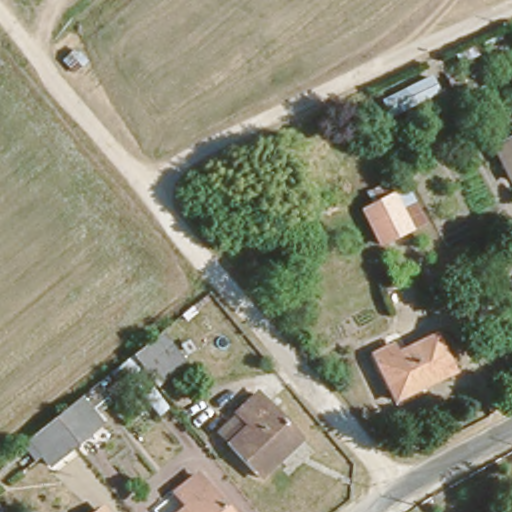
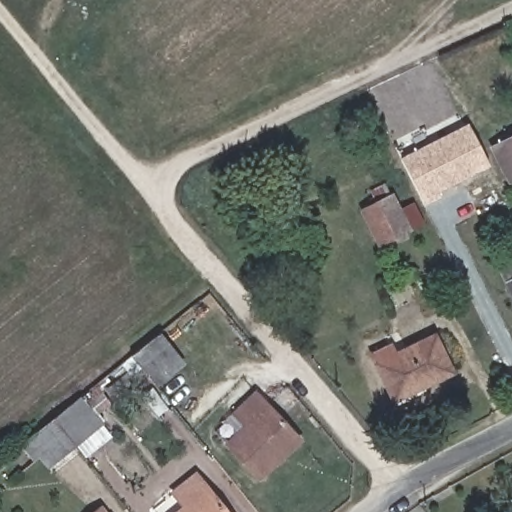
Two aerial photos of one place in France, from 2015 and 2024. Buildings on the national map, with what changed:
unchanged [(442,99),(388,124),(376,97),(428,71),(442,99)]
new [(421,202),(399,158),(467,124),(489,167),(421,202)]
new [(489,146),(512,134),(512,180),(507,183),(489,146)]
demolished [(512,137),(512,169),(500,144),(512,137)]
unchanged [(412,225),(381,240),(366,209),(396,193),(412,225)]
unchanged [(512,273),(512,298),(503,277),(512,273)]
unchanged [(185,365),(158,388),(131,355),(158,332),(185,365)]
unchanged [(451,372),(395,401),(368,352),(389,342),(397,353),(430,337),(451,372)]
unchanged [(77,395),(99,422),(72,445),(50,418),(77,395)]
unchanged [(295,442),(253,475),(214,428),(255,395),(295,442)]
unchanged [(72,445),(48,465),(25,438),(50,418),(72,445)]
unchanged [(223,512),(169,512),(182,502),(172,491),(192,474),(223,512)]
new [(100,506),(106,512),(92,512),(100,506)]

